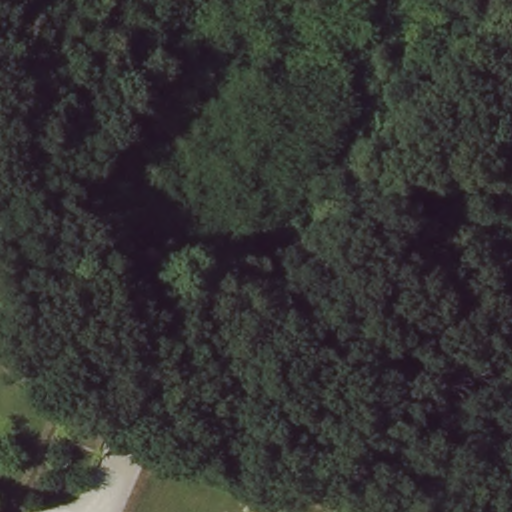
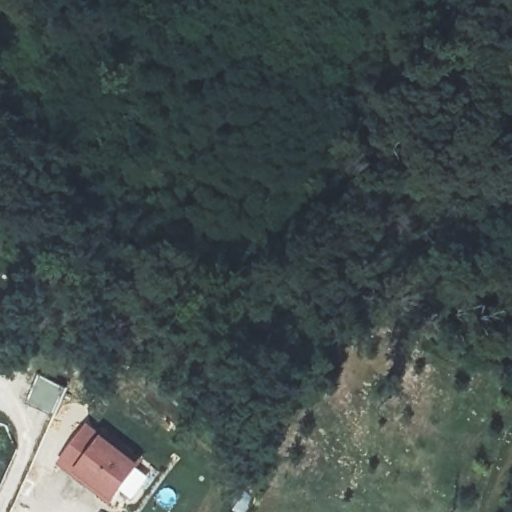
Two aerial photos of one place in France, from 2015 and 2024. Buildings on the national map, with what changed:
new [(98,480),(95,483),(65,460),(93,424),(107,436),(110,432),(145,460),(117,495),(98,480)]

